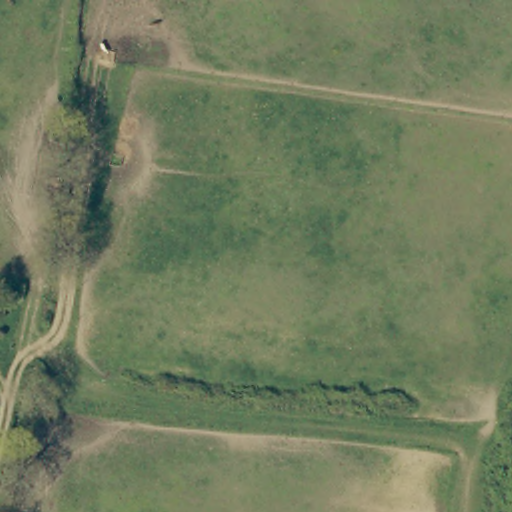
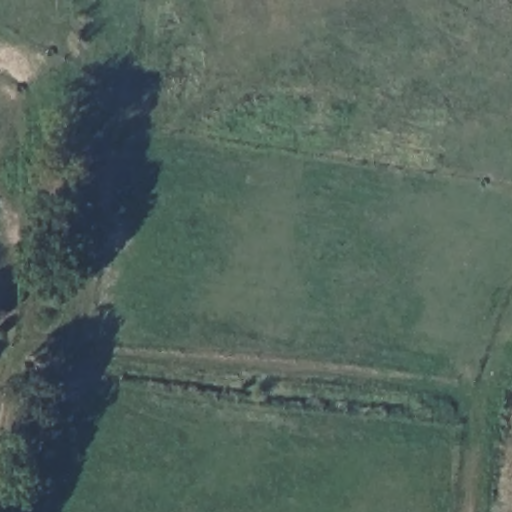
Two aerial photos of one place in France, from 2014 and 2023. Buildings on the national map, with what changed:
[]

